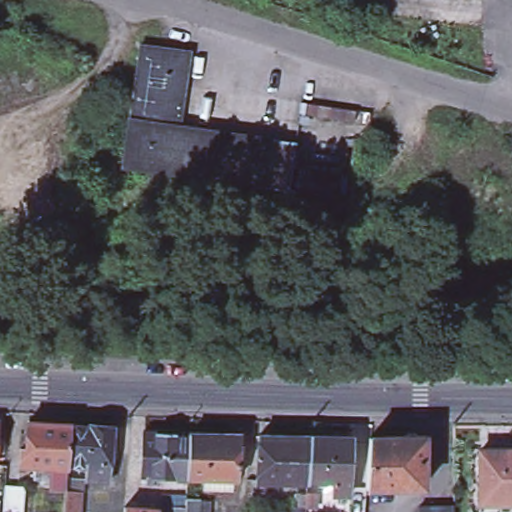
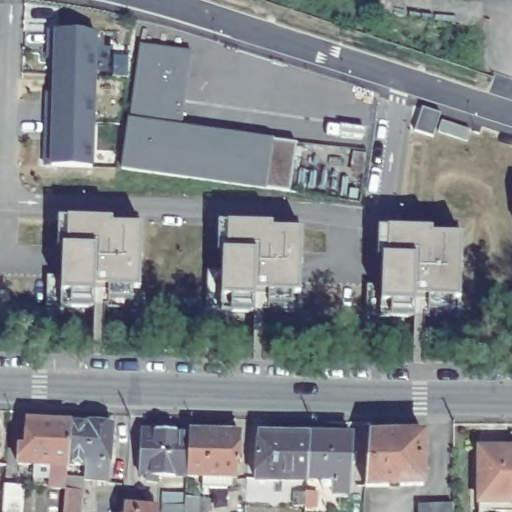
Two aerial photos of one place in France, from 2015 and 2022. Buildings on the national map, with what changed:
new [(42,166),(45,93),(50,94),(52,61),(45,60),(47,29),(54,30),(97,32),(92,167),(49,166),(42,166)]
unchanged [(297,144),(290,191),(122,167),(129,118),(131,118),(141,46),(190,53),(180,127),(297,144)]
new [(437,136),(440,126),(468,134),(465,145),(437,136)]
new [(46,306),(47,276),(58,276),(60,249),(60,218),(145,222),(145,290),(138,290),(138,310),(109,310),(95,310),(72,310),(61,307),(46,306)]
new [(208,271),(217,271),(217,254),(218,223),(304,226),(303,295),(295,295),(295,312),(265,311),(265,320),(220,318),(220,312),(207,311),(208,271)]
new [(365,286),(377,286),(377,256),(377,230),(432,231),(432,236),(462,237),(460,300),(458,313),(458,320),(419,320),(386,318),(365,315),(365,286)]
unchanged [(44,471),(30,470),(30,457),(13,456),(15,440),(21,441),(23,413),(67,416),(65,437),(64,447),(63,456),(63,460),(62,481),(44,480),(44,471)]
unchanged [(64,447),(65,437),(67,416),(85,417),(85,414),(110,415),(105,473),(80,471),(81,457),(63,456),(64,447)]
unchanged [(407,422),(415,422),(417,427),(427,427),(427,478),(367,480),(371,429),(403,428),(407,422)]
unchanged [(307,480),(257,479),(260,430),(311,431),(307,477),(307,480)]
unchanged [(335,492),(335,478),(307,477),(311,431),(353,432),(352,478),(351,493),(335,492)]
unchanged [(163,478),(162,485),(149,485),(148,477),(143,477),(145,432),(192,433),(188,479),(163,478)]
unchanged [(237,480),(232,480),(232,485),(210,485),(209,480),(188,479),(192,433),(237,435),(237,480)]
unchanged [(502,445),(502,441),(512,441),(512,504),(480,502),(482,445),(502,445)]
unchanged [(62,481),(75,483),(73,505),(73,512),(59,512),(60,504),(61,487),(62,481)]
unchanged [(5,488),(24,490),(22,510),(22,512),(4,512),(4,507),(5,488)]
unchanged [(164,498),(186,500),(187,495),(202,496),(200,512),(163,512),(164,498)]
unchanged [(305,509),(297,509),(297,496),(307,497),(318,497),(317,510),(305,509)]
unchanged [(159,512),(124,512),(125,503),(160,506),(159,512)]
unchanged [(421,509),(437,508),(454,507),(454,512),(421,512),(421,509)]

